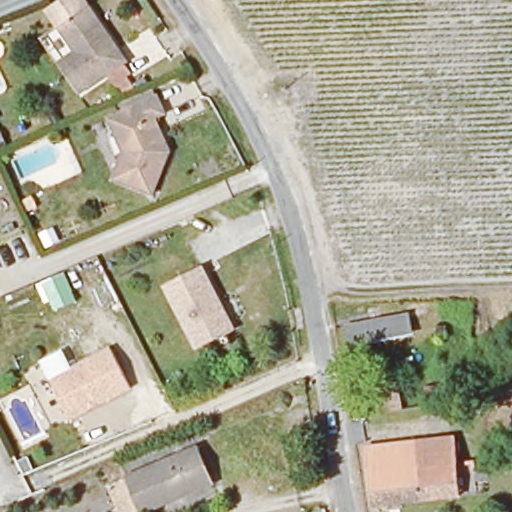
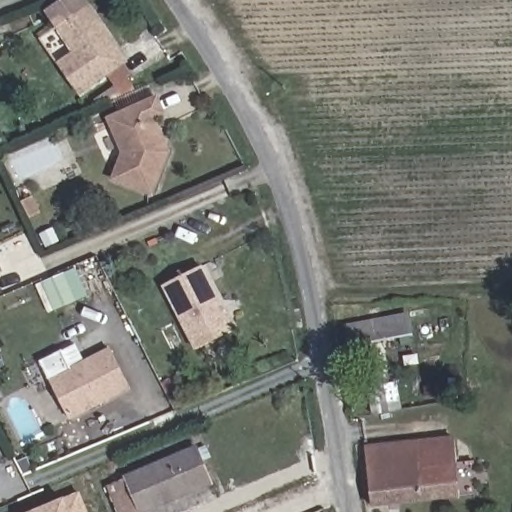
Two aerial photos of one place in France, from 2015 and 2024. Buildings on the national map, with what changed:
unchanged [(90,4),(130,59),(86,91),(65,60),(77,51),(60,25),(90,4)]
unchanged [(161,124),(175,158),(156,199),(119,184),(131,159),(116,124),(164,104),(171,120),(161,124)]
unchanged [(237,333),(200,351),(165,283),(205,265),(237,333)]
unchanged [(75,270),(82,288),(63,296),(55,278),(75,270)]
unchanged [(403,315),(408,331),(350,345),(347,328),(403,315)]
unchanged [(112,352),(131,393),(70,422),(51,381),(112,352)]
unchanged [(370,388),(397,385),(401,411),(373,415),(370,388)]
unchanged [(455,493),(368,506),(360,449),(447,436),(455,493)]
unchanged [(212,482),(140,512),(120,512),(109,486),(198,448),(212,482)]
new [(88,512),(31,512),(80,491),(88,512)]

